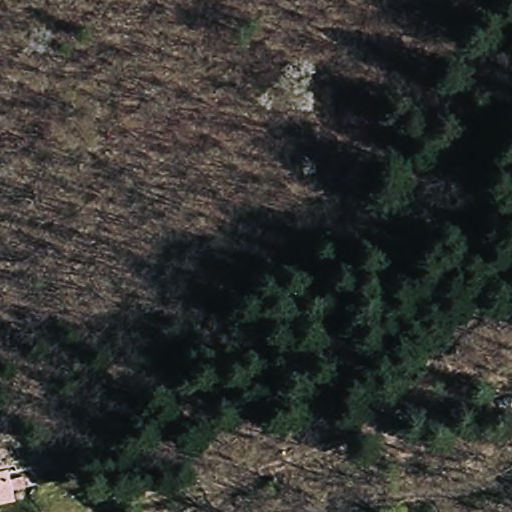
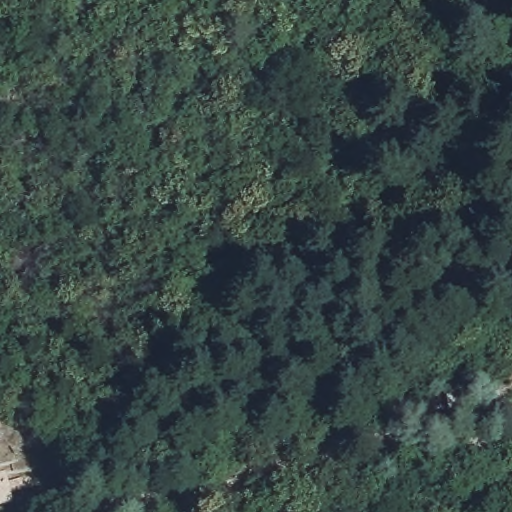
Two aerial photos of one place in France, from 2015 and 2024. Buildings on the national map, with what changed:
unchanged [(22,479),(25,501),(0,507),(0,483),(22,479)]

